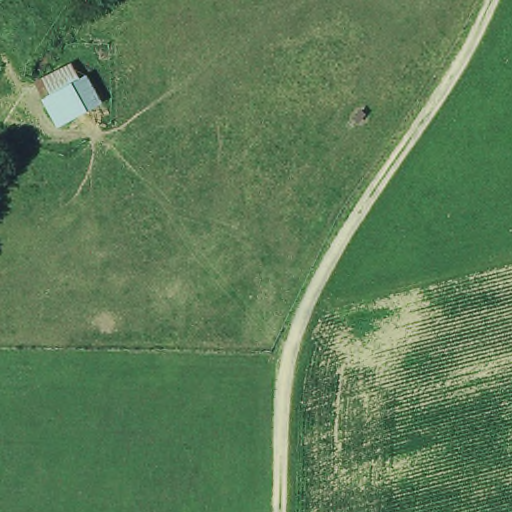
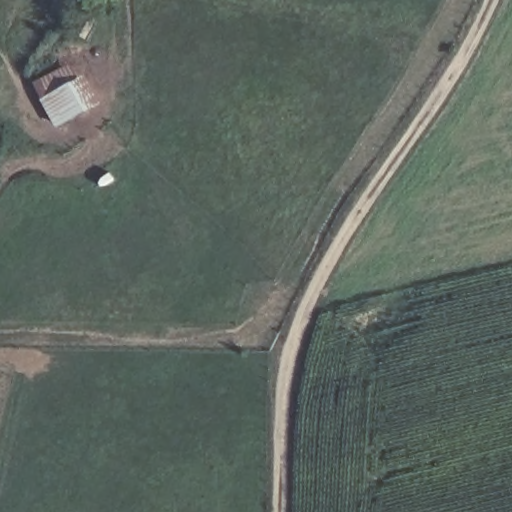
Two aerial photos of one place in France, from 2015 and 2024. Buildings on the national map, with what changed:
unchanged [(94,108),(58,128),(43,101),(79,81),(94,108)]

